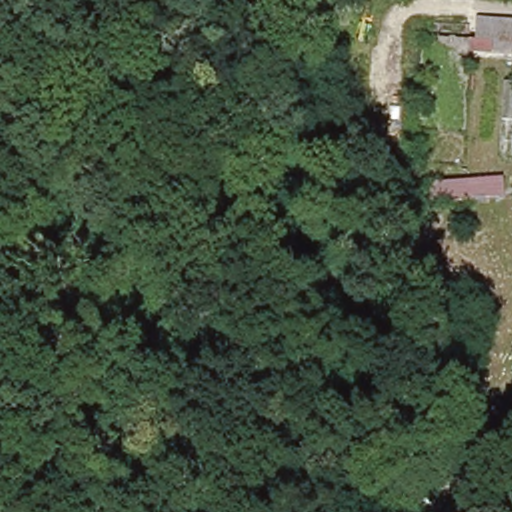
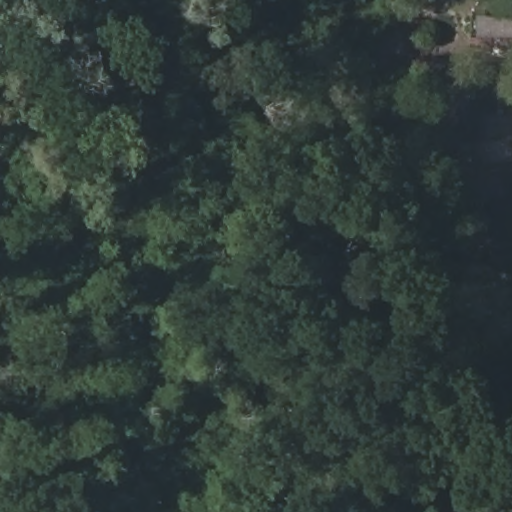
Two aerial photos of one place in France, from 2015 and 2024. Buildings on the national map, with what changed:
unchanged [(479,22),(512,21),(512,50),(480,50),(479,22)]

